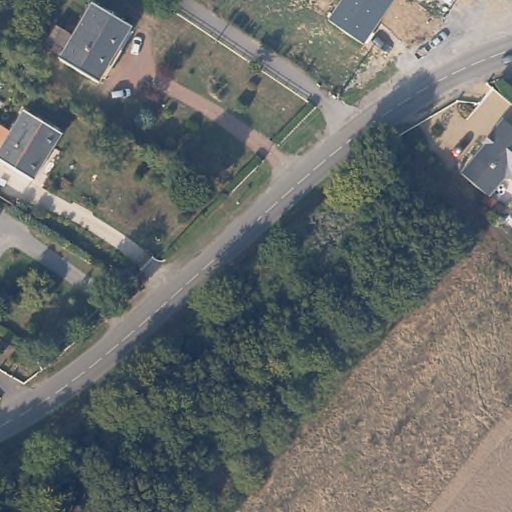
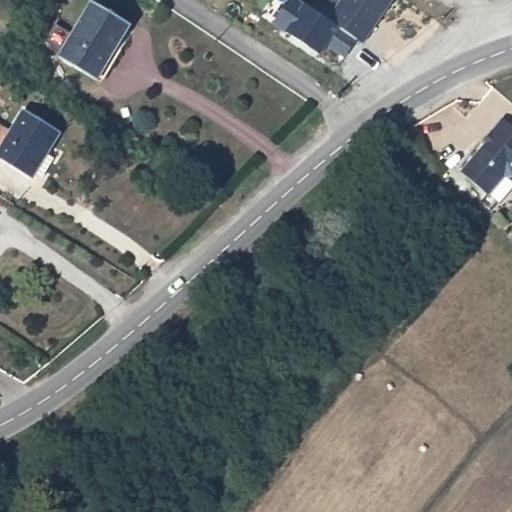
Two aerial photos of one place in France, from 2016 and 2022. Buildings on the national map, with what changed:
new [(289,0),(298,0),(305,4),(329,21),(340,29),(358,39),(346,58),(328,47),(322,55),(286,31),(273,24),(289,0)]
demolished [(311,0),(315,0),(312,2),(311,0)]
unchanged [(329,21),(343,0),(394,0),(364,43),(329,21)]
unchanged [(129,31),(97,80),(59,58),(90,7),(129,31)]
unchanged [(490,184),(464,161),(488,134),(486,131),(494,121),(505,108),(512,113),(512,163),(508,163),(490,184)]
unchanged [(65,134),(37,181),(0,159),(0,124),(19,134),(32,113),(65,134)]

